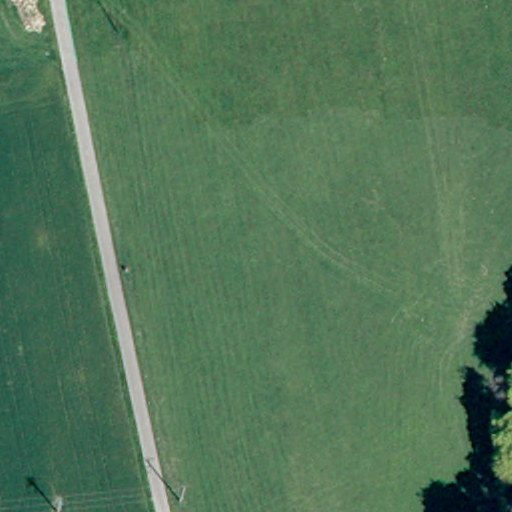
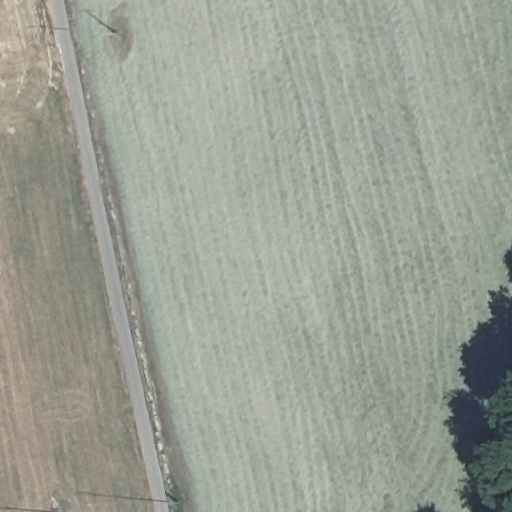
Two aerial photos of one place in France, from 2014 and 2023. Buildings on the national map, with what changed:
[]

